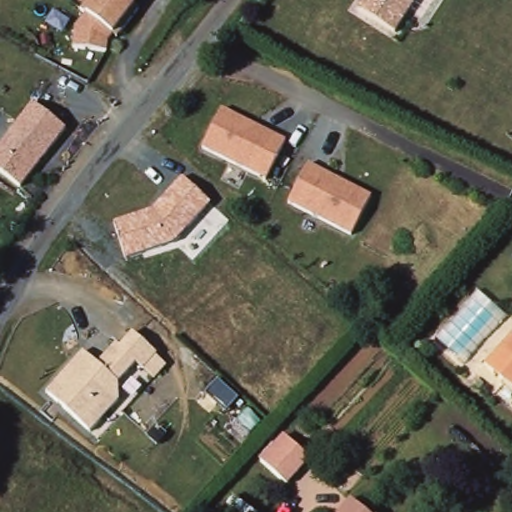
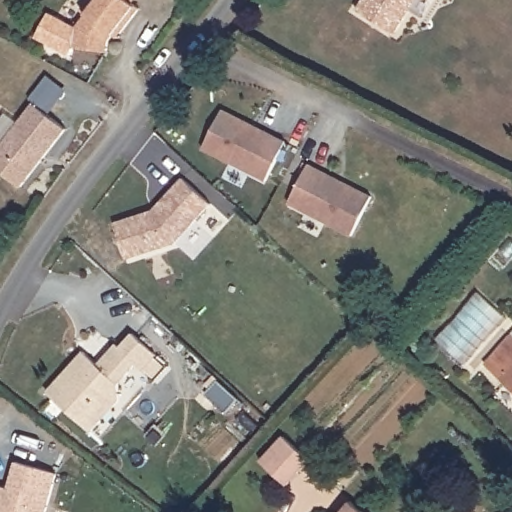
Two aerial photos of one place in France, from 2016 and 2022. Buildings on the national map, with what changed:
unchanged [(134,2),(108,34),(105,47),(74,44),(75,24),(80,6),(85,0),(136,0),(134,2)]
unchanged [(398,30),(358,5),(362,0),(417,0),(398,30)]
new [(69,54),(35,36),(48,11),(75,26),(74,44),(69,54)]
unchanged [(21,181),(0,166),(0,142),(31,101),(65,127),(21,181)]
unchanged [(285,137),(263,180),(201,150),(221,107),(285,137)]
unchanged [(371,193),(349,234),(288,202),(308,162),(371,193)]
unchanged [(211,202),(175,242),(127,258),(115,221),(153,207),(182,177),(211,202)]
unchanged [(45,392),(81,351),(96,364),(115,343),(119,347),(131,331),(155,354),(140,372),(134,367),(117,384),(120,400),(90,432),(45,392)]
unchanged [(485,364),(512,333),(512,389),(485,364)]
unchanged [(281,490),(255,467),(278,441),(305,465),(281,490)]
new [(7,488),(15,461),(56,474),(46,512),(0,512),(0,486),(7,488)]
unchanged [(363,512),(342,512),(350,502),(363,512)]

